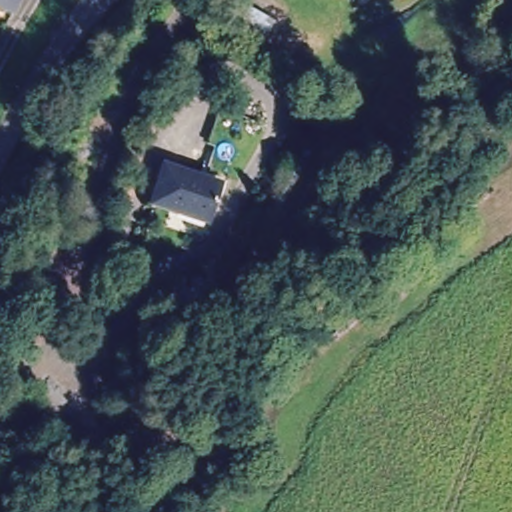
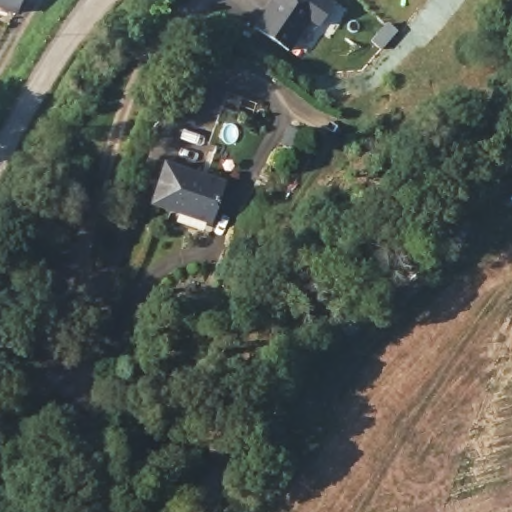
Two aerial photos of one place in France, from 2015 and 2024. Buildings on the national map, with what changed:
unchanged [(20,17),(0,11),(0,0),(25,0),(20,17)]
new [(318,27),(311,22),(291,51),(254,28),(271,0),(328,0),(332,3),(318,27)]
unchanged [(163,166),(222,181),(217,197),(212,219),(153,202),(162,167),(163,166)]

